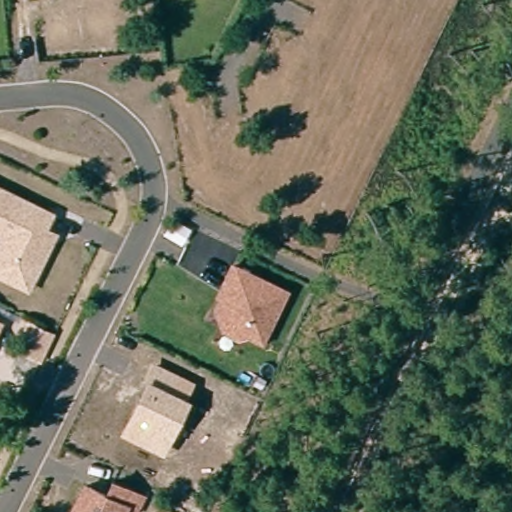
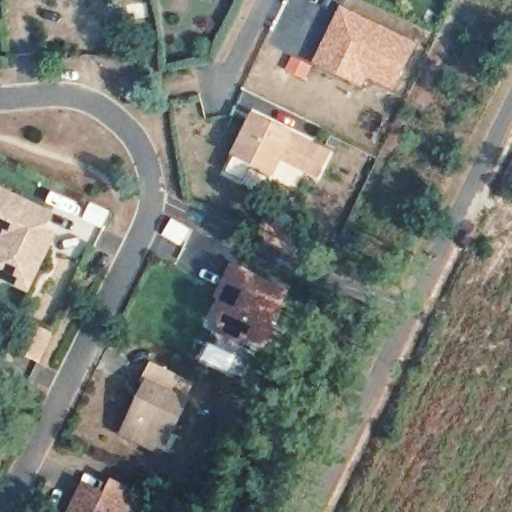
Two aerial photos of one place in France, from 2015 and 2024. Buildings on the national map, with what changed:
new [(337,74),(317,64),(331,35),(326,34),(339,9),(411,45),(390,88),(362,74),(357,84),(337,74)]
new [(283,159),(274,179),(251,165),(244,180),(228,172),(235,155),(231,155),(252,112),(296,134),(332,152),(319,179),(283,159)]
unchanged [(0,238),(2,233),(0,232),(0,186),(51,210),(44,225),(50,228),(54,230),(48,244),(30,280),(27,285),(0,272),(0,238)]
unchanged [(225,328),(221,317),(217,304),(229,279),(225,277),(233,262),(286,288),(262,337),(247,330),(237,334),(225,328)]
new [(26,327),(45,336),(34,358),(15,350),(26,327)]
unchanged [(148,382),(142,380),(151,360),(197,382),(191,396),(194,399),(164,455),(121,432),(148,382)]
unchanged [(71,512),(86,482),(126,501),(121,512),(71,512)]

